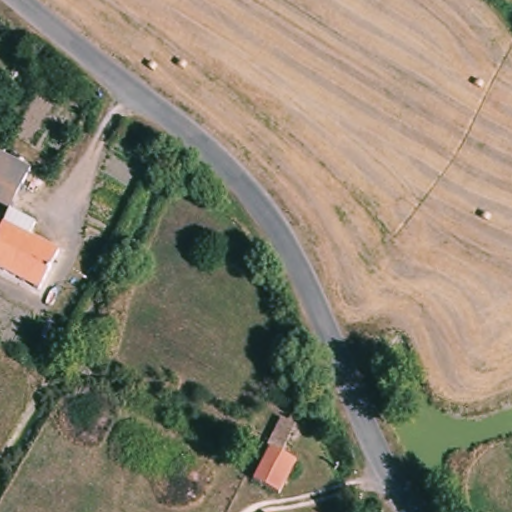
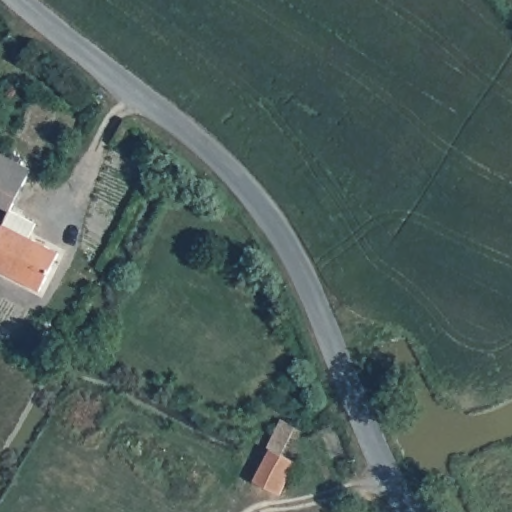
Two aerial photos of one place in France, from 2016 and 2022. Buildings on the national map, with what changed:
unchanged [(0,157),(31,175),(8,215),(0,210),(0,157)]
unchanged [(33,230),(26,242),(58,261),(38,295),(0,274),(0,230),(1,228),(8,215),(33,230)]
unchanged [(283,458),(302,468),(283,502),(251,486),(266,458),(284,422),(299,430),(283,458)]

